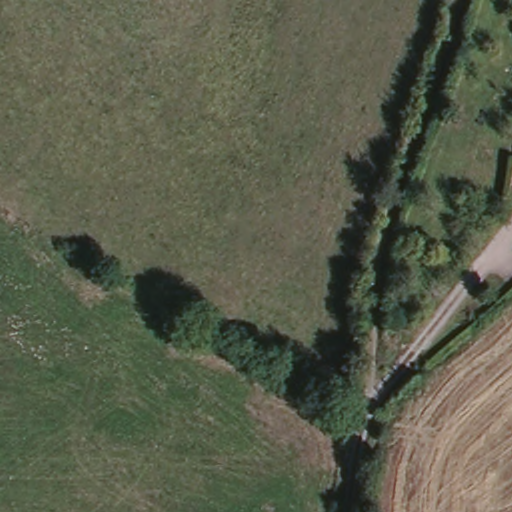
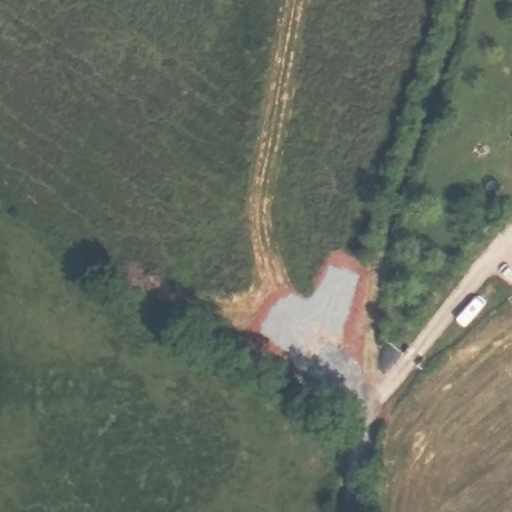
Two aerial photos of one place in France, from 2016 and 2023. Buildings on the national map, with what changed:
[]

